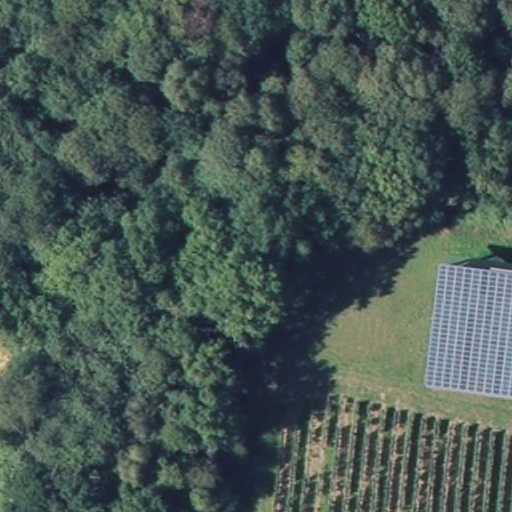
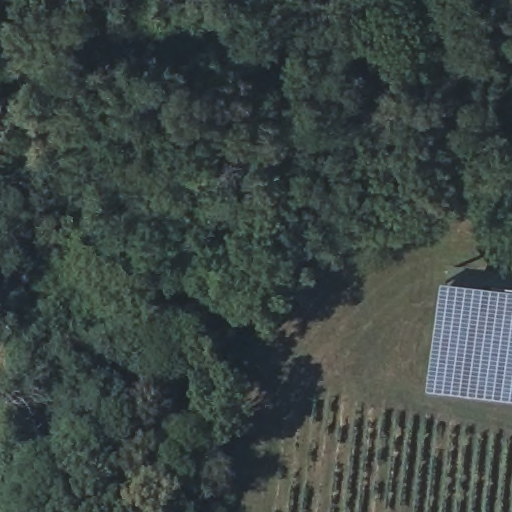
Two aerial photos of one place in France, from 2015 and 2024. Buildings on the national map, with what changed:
unchanged [(512,404),(426,393),(440,274),(512,283),(512,404)]

